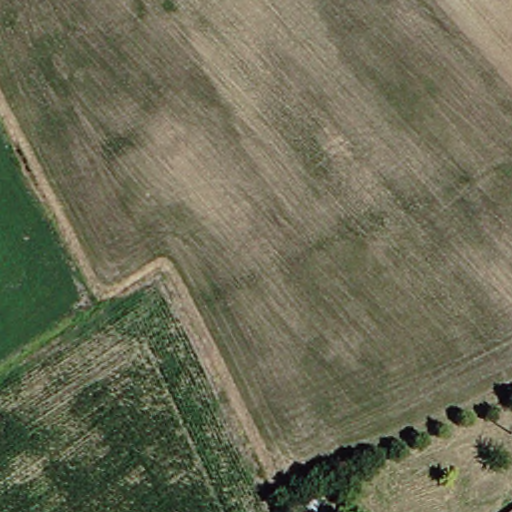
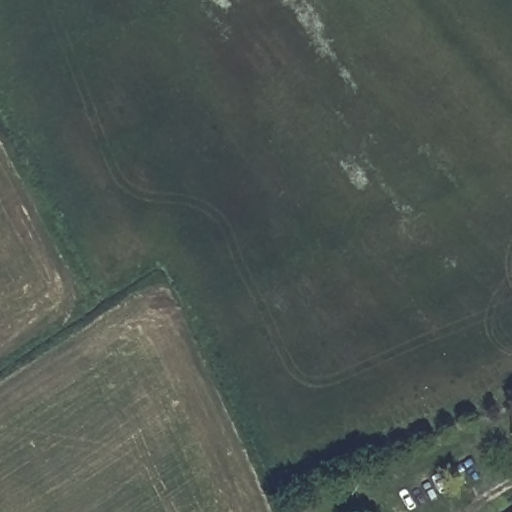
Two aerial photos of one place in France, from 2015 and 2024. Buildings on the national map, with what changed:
[]

